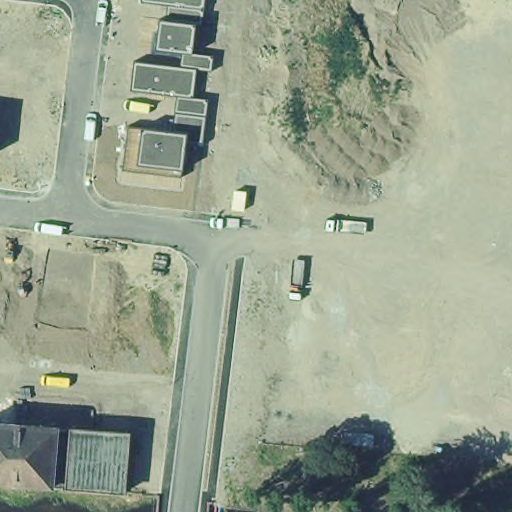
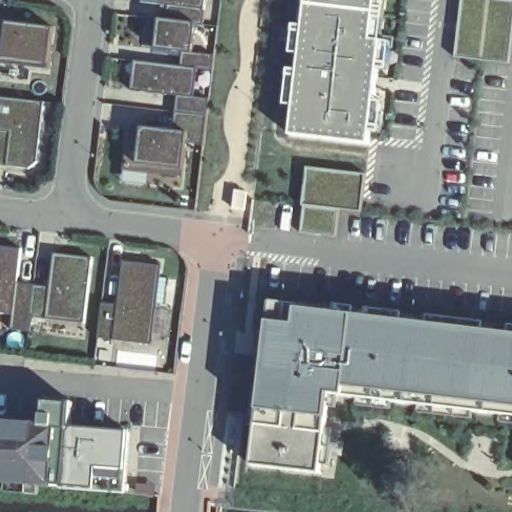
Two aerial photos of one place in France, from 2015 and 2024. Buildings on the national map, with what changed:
unchanged [(194,25),(191,53),(212,56),(211,70),(196,69),(191,96),(208,99),(201,145),(184,142),(181,169),(180,176),(123,170),(128,126),(139,127),(174,131),(176,95),(131,90),(133,61),(181,67),(183,52),(156,49),(158,20),(168,20),(168,5),(139,1),(140,0),(204,0),(201,26),(194,25)]
new [(291,136),(307,0),(386,0),(369,145),(291,136)]
new [(500,0),(512,2),(512,35),(509,64),(455,57),(462,0),(500,0)]
new [(0,63),(0,23),(8,24),(53,29),(49,62),(48,69),(0,63)]
new [(37,165),(28,170),(0,166),(0,98),(43,104),(37,165)]
new [(361,213),(339,210),(336,237),(301,232),(304,206),(302,206),(306,168),(366,175),(361,213)]
new [(21,250),(16,285),(33,286),(29,317),(28,331),(11,330),(13,315),(0,313),(0,247),(21,250)]
new [(33,286),(49,288),(53,255),(91,260),(83,324),(29,317),(33,286)]
new [(95,338),(99,303),(117,305),(123,262),(161,266),(151,345),(95,338)]
new [(272,304),(512,334),(512,416),(330,395),(327,418),(259,410),(272,304)]
new [(252,465),(259,410),(327,418),(321,473),(252,465)]
unchanged [(123,437),(118,495),(81,493),(64,490),(43,490),(0,487),(0,428),(123,437)]

